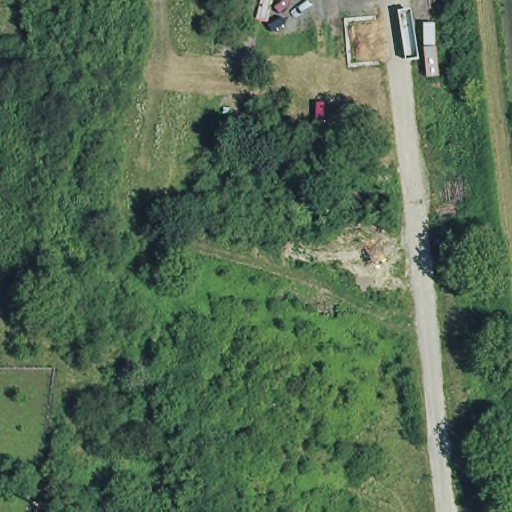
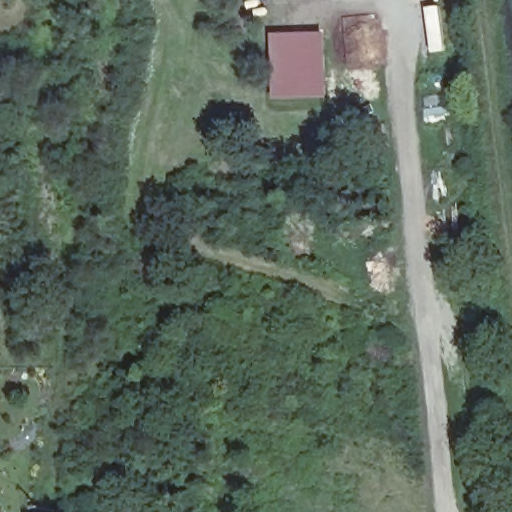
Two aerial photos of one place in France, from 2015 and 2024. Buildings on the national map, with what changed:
new [(333,33),(333,100),(276,100),(274,34),(333,33)]

